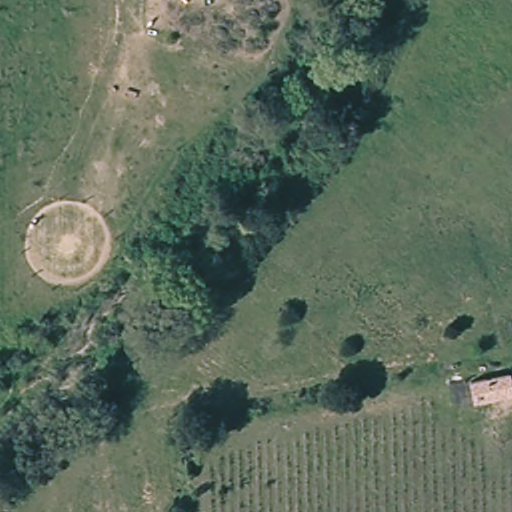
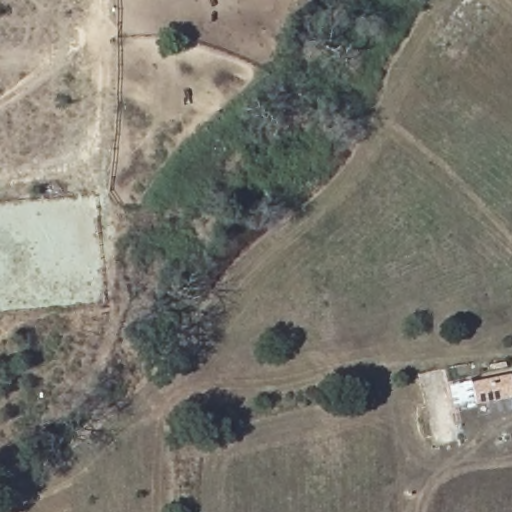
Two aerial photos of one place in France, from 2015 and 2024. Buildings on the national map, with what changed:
unchanged [(512,388),(480,395),(476,379),(510,370),(512,378),(512,388)]

